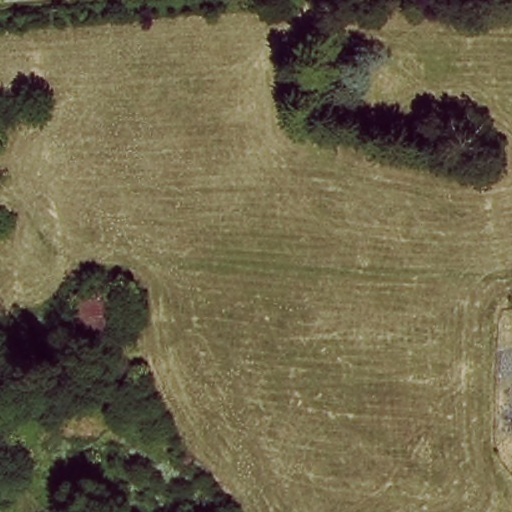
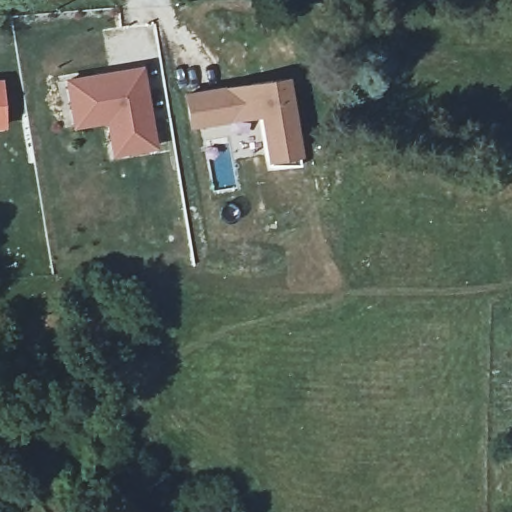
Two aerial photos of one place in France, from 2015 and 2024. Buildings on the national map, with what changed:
new [(111,157),(106,124),(74,128),(66,77),(145,64),(158,148),(111,157)]
new [(267,169),(266,161),(259,117),(190,127),(185,93),(291,78),(302,157),(298,157),(300,164),(267,169)]
new [(0,128),(0,80),(3,79),(7,128),(0,128)]
unchanged [(119,284),(131,330),(112,335),(112,348),(92,356),(73,296),(119,284)]

